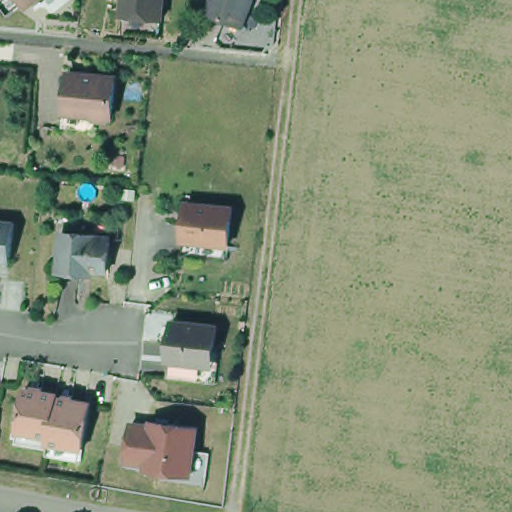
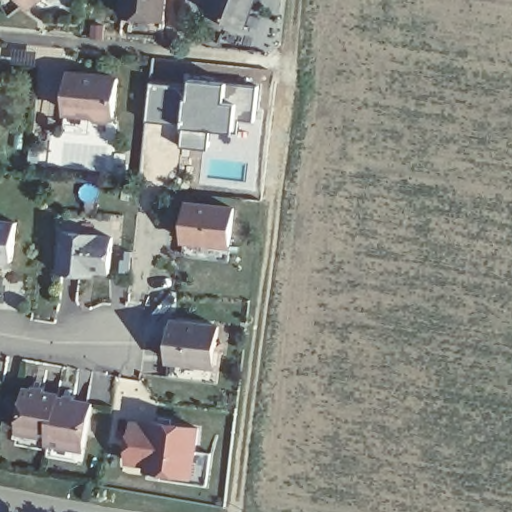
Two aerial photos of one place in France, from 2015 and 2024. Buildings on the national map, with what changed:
unchanged [(29,0),(23,5),(20,0),(29,0)]
unchanged [(119,13),(120,0),(160,0),(159,17),(119,13)]
unchanged [(226,16),(223,21),(206,14),(210,0),(250,0),(242,22),(226,16)]
unchanged [(57,104),(61,67),(76,69),(77,65),(88,66),(88,69),(109,71),(105,110),(97,112),(87,111),(85,123),(55,120),(57,104)]
new [(257,86),(255,110),(239,109),(236,132),(212,130),(209,150),(179,147),(181,125),(165,122),(144,119),(150,81),(172,83),(187,86),(189,78),(257,86)]
unchanged [(167,246),(170,231),(174,194),(218,199),(214,237),(212,252),(167,246)]
unchanged [(12,261),(0,259),(0,220),(17,222),(12,261)]
unchanged [(55,262),(59,223),(92,227),(92,228),(107,230),(104,263),(87,262),(87,266),(77,265),(55,262)]
unchanged [(203,362),(164,357),(166,336),(169,318),(175,319),(213,325),(211,344),(209,363),(203,362)]
unchanged [(42,446),(44,441),(12,434),(15,422),(22,380),(55,386),(54,388),(89,395),(81,440),(78,453),(42,446)]
unchanged [(198,429),(192,476),(147,470),(147,465),(127,462),(132,425),(152,427),(153,423),(198,429)]

